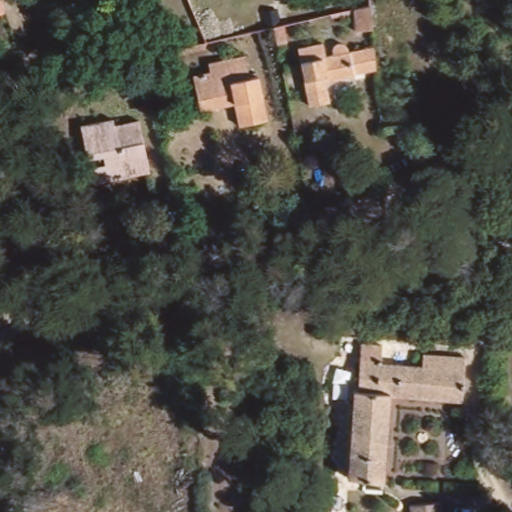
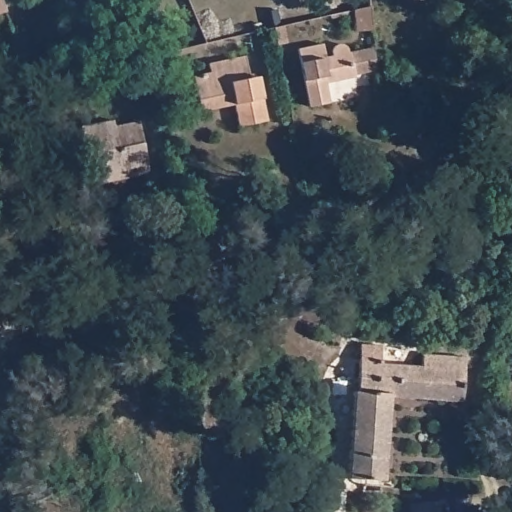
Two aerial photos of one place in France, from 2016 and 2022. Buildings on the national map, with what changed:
unchanged [(2,12),(0,13),(0,5),(2,12)]
unchanged [(370,29),(352,31),(351,11),(369,7),(370,29)]
unchanged [(328,103),(308,104),(304,44),(330,43),(329,56),(337,54),(338,50),(339,47),(340,46),(343,45),(345,45),(348,46),(351,48),(353,49),(353,54),(356,54),(374,53),(377,78),(357,79),(327,82),(328,103)]
unchanged [(267,125),(238,130),(235,107),(200,113),(195,80),(212,77),(210,67),(247,59),(251,82),(261,81),(267,125)]
unchanged [(102,184),(100,175),(98,168),(104,166),(102,160),(93,162),(84,127),(116,120),(119,128),(144,123),(152,164),(154,174),(102,184)]
unchanged [(385,483),(373,481),(350,479),(359,392),(363,393),(366,364),(426,368),(428,356),(471,361),(467,402),(466,404),(394,397),(385,483)]
unchanged [(407,512),(406,504),(436,501),(438,512),(407,512)]

